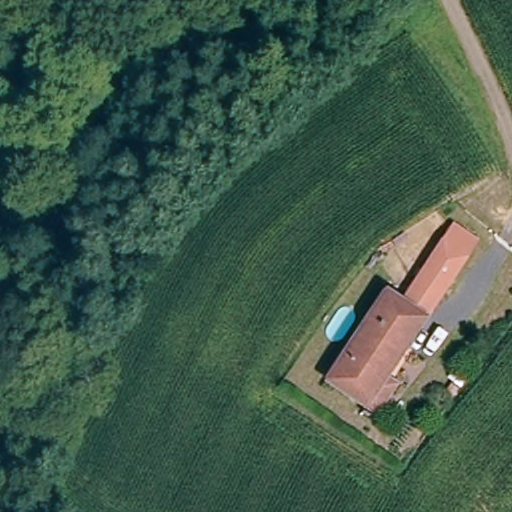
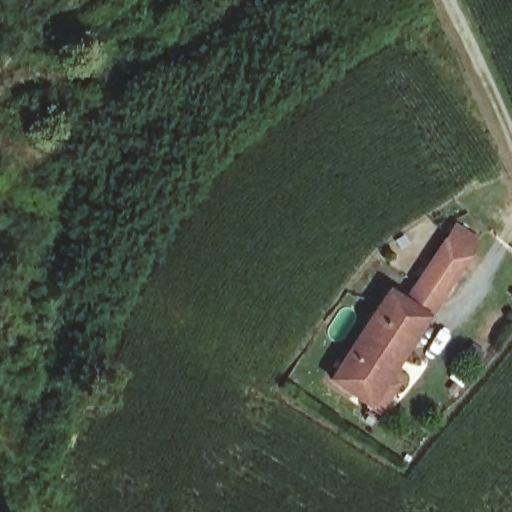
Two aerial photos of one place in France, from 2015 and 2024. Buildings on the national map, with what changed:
unchanged [(432,296),(412,281),(453,226),(472,241),(432,296)]
unchanged [(370,412),(360,405),(359,405),(324,378),(387,292),(423,319),(380,378),(389,386),(370,412)]

